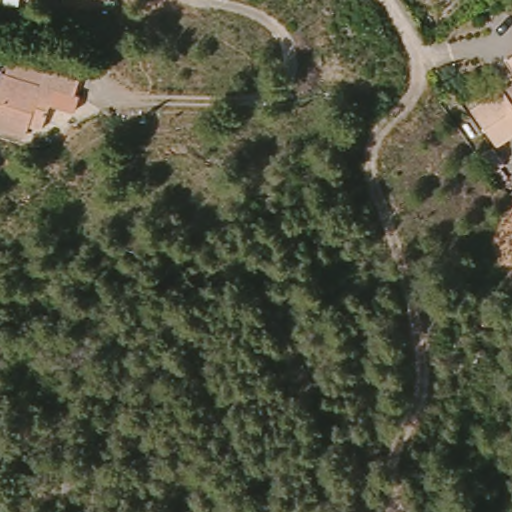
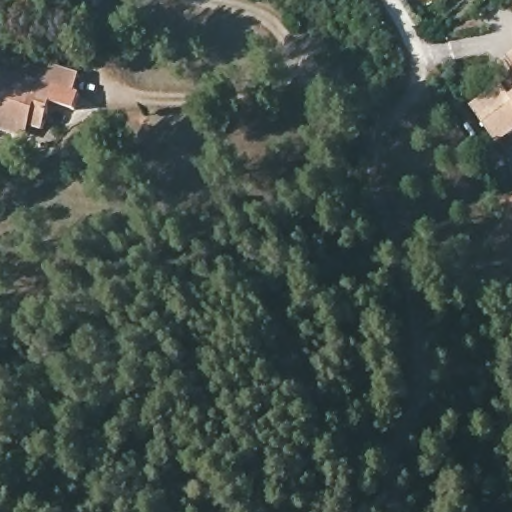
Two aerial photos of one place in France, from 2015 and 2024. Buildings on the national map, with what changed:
unchanged [(512,65),(502,52),(512,44),(512,65)]
unchanged [(5,48),(40,59),(72,68),(73,72),(67,90),(52,87),(36,125),(22,122),(18,134),(0,127),(0,63),(5,48)]
unchanged [(467,103),(497,81),(507,93),(512,89),(512,123),(492,139),(467,103)]

